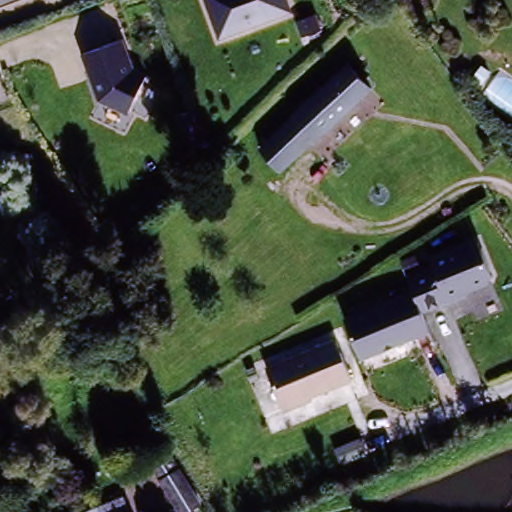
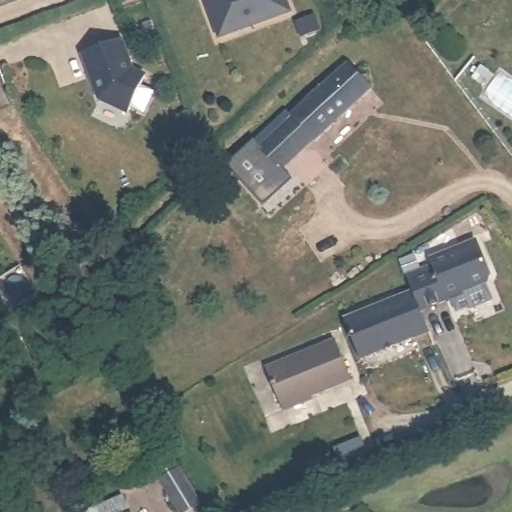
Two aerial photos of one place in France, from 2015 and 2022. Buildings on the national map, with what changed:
unchanged [(212,0),(292,0),(294,6),(223,32),(212,0)]
unchanged [(300,36),(296,21),(314,14),(320,31),(300,36)]
unchanged [(100,95),(85,52),(124,39),(133,66),(147,74),(128,110),(100,95)]
unchanged [(276,132),(272,129),(286,117),(345,68),(366,93),(307,142),(294,154),(273,171),(255,150),(276,132)]
unchanged [(184,135),(176,113),(190,107),(199,130),(202,137),(187,144),(184,135)]
unchanged [(492,286),(422,313),(427,328),(358,357),(345,318),(410,291),(404,274),(428,263),(426,257),(474,240),(492,286)]
unchanged [(335,340),(351,378),(284,406),(268,367),(335,340)]
unchanged [(360,438),(366,453),(343,463),(337,448),(360,438)]
unchanged [(201,493),(180,506),(159,471),(151,457),(159,452),(170,445),(201,493)]
unchanged [(130,512),(93,512),(125,498),(130,512)]

